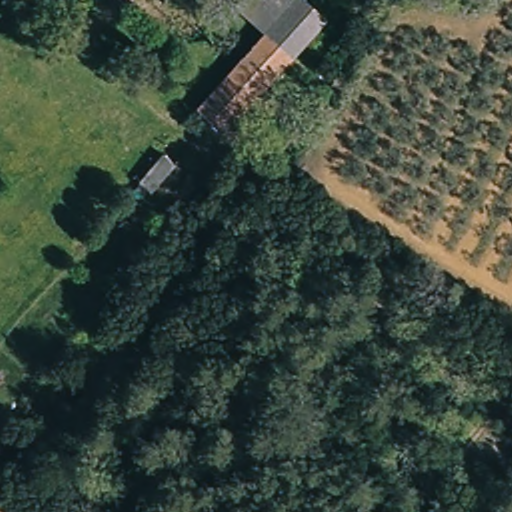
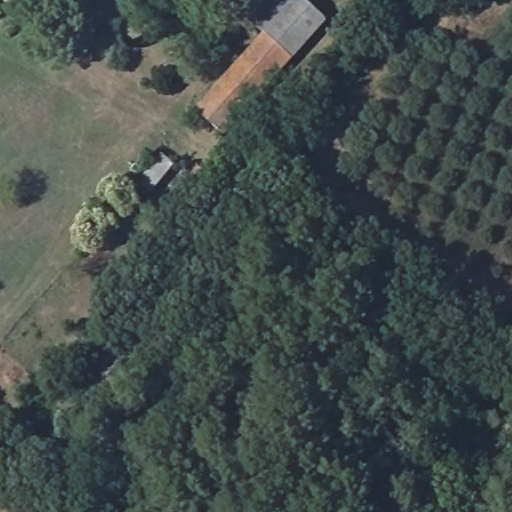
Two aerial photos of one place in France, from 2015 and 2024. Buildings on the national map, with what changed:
unchanged [(114,0),(128,0),(120,7),(114,0)]
unchanged [(315,33),(293,59),(264,34),(235,7),(241,0),(299,0),(325,21),(315,33)]
unchanged [(227,134),(198,109),(264,34),(293,59),(227,134)]
unchanged [(173,169),(149,197),(133,186),(158,154),(173,169)]

